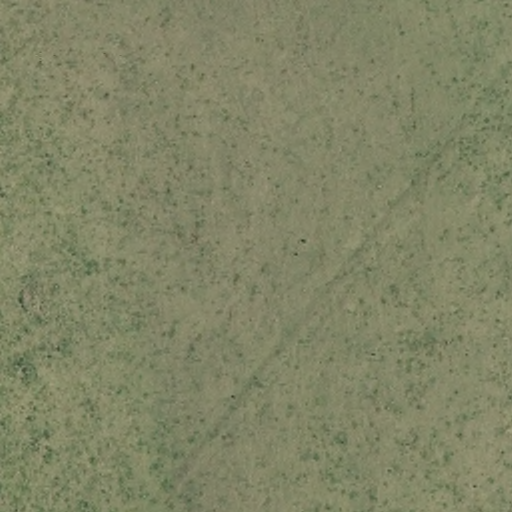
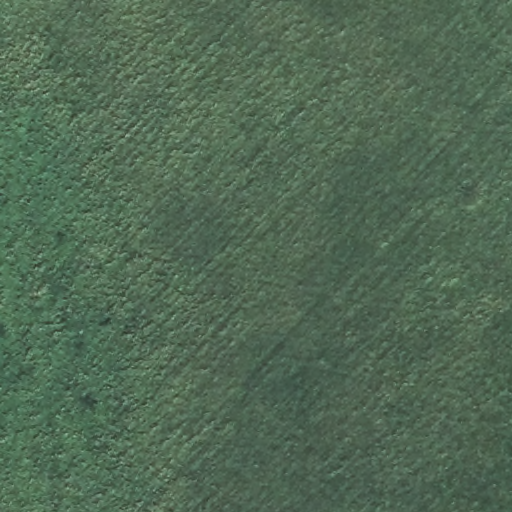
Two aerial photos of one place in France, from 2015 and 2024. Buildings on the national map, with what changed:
[]

